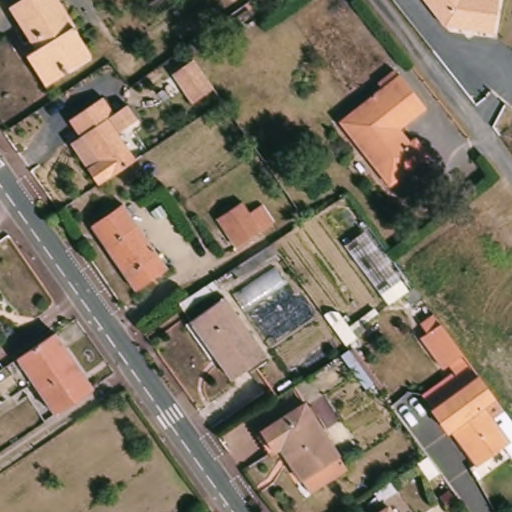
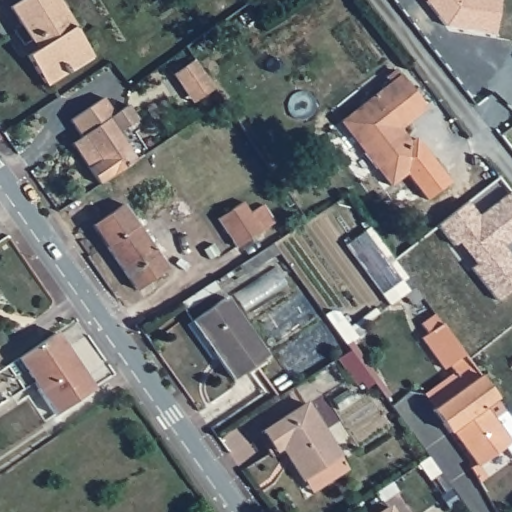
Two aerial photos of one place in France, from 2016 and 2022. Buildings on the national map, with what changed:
unchanged [(25,0),(49,0),(86,60),(40,88),(23,61),(34,55),(6,12),(25,0)]
unchanged [(496,36),(445,28),(424,0),(500,0),(496,36)]
unchanged [(194,99),(174,70),(195,56),(214,85),(194,99)]
unchanged [(411,139),(424,155),(385,185),(336,122),(397,76),(422,108),(395,130),(400,137),(405,144),(411,139)]
unchanged [(100,180),(89,163),(100,156),(84,131),(81,132),(70,116),(103,93),(114,110),(108,114),(136,156),(100,180)]
new [(471,268),(474,264),(458,243),(454,245),(438,225),(466,203),(478,216),(510,192),(512,195),(512,238),(502,246),(512,260),(512,288),(496,300),(471,268)]
unchanged [(233,252),(212,223),(238,206),(244,216),(257,208),(269,227),(233,252)]
unchanged [(168,272),(136,294),(106,252),(91,231),(96,228),(125,208),(168,272)]
unchanged [(409,293),(395,304),(350,243),(369,230),(414,290),(419,285),(427,296),(417,305),(409,293)]
unchanged [(246,285),(239,275),(273,253),(280,262),(246,285)]
unchanged [(225,307),(266,365),(233,389),(193,331),(225,307)]
unchanged [(504,440),(473,463),(448,429),(445,433),(427,408),(429,407),(419,393),(450,372),(445,364),(438,368),(416,338),(422,333),(416,323),(429,313),(436,323),(467,366),(498,409),(512,428),(512,431),(502,438),(504,440)]
unchanged [(73,356),(68,359),(90,390),(56,414),(34,381),(23,389),(7,365),(55,332),(73,356)]
unchanged [(372,389),(347,354),(355,348),(380,382),(372,389)]
unchanged [(307,490),(299,479),(298,480),(276,445),(268,452),(257,433),(301,404),(334,455),(342,468),(307,490)]
unchanged [(393,495),(377,507),(370,497),(387,485),(393,495)]

